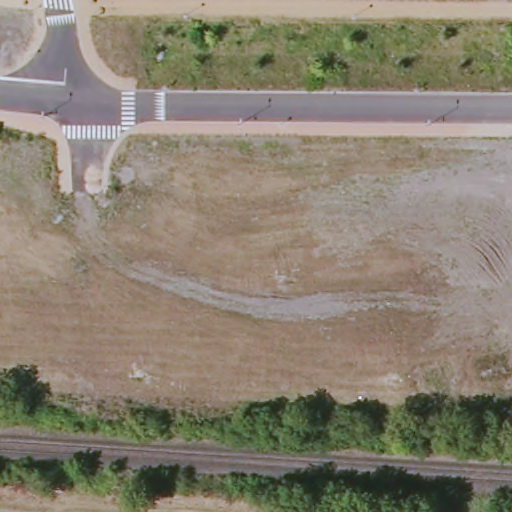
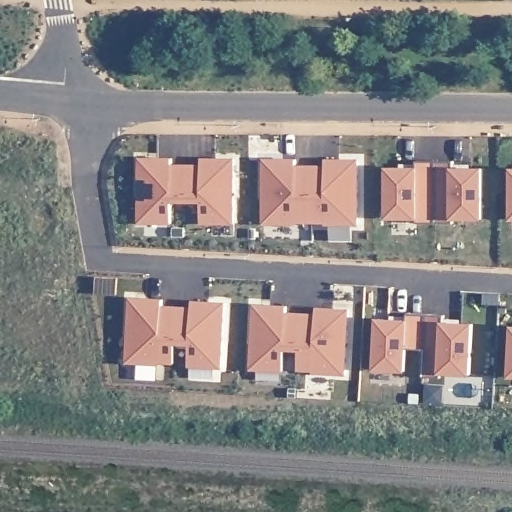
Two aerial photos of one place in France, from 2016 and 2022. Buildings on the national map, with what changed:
new [(202,222),(202,204),(173,203),(172,222),(140,221),(140,156),(173,156),(173,162),(202,164),(202,157),(235,157),(234,223),(202,222)]
new [(263,223),(262,159),(297,158),(296,164),(327,164),(327,158),(358,159),(358,224),(263,223)]
new [(387,219),(387,166),(419,167),(419,161),(452,161),(452,167),(485,167),(485,218),(387,219)]
new [(190,366),(190,345),(177,344),(175,364),(127,362),(132,297),(164,298),(163,304),(193,306),(194,300),(227,302),(223,367),(190,366)]
new [(298,371),(299,352),(284,351),(283,371),(252,368),(255,302),(288,305),(287,312),(317,312),(317,306),(350,308),(347,372),(298,371)]
new [(442,374),(424,372),(424,344),(409,345),(407,371),(375,368),(377,317),(409,319),(410,312),(442,315),(442,321),(475,323),(472,375),(442,374)]
new [(510,376),(512,326),(512,376),(510,376)]

